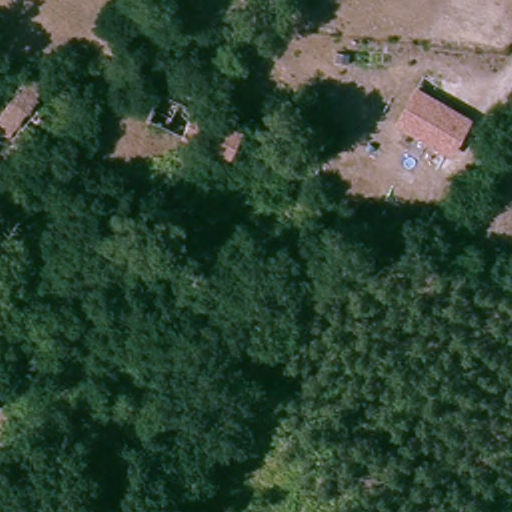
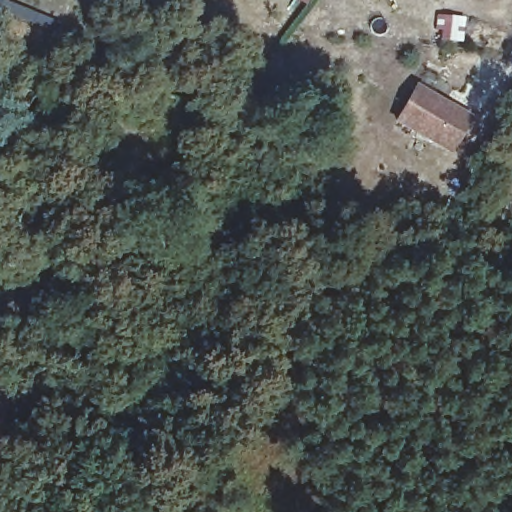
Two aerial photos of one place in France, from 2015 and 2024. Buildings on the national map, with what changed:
unchanged [(0,121),(0,98),(26,63),(72,97),(37,147),(0,121)]
unchanged [(181,105),(235,137),(224,157),(151,117),(172,79),(188,88),(181,105)]
unchanged [(471,115),(448,156),(390,122),(413,81),(471,115)]

